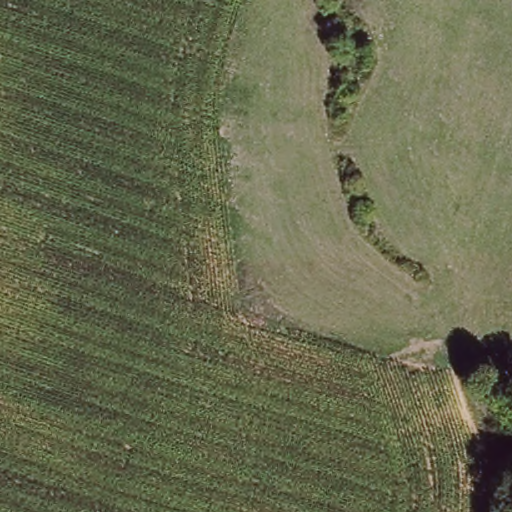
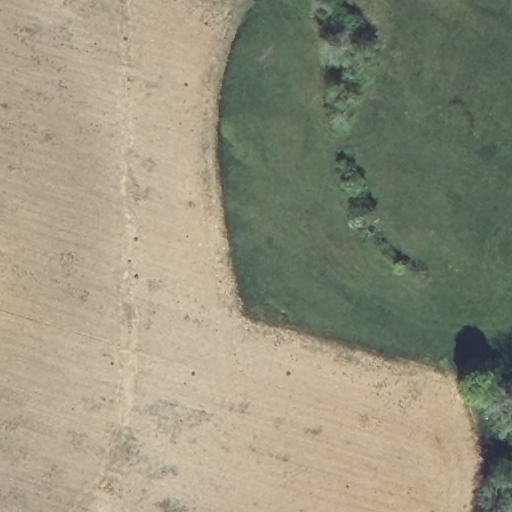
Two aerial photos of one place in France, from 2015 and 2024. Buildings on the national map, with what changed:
[]

